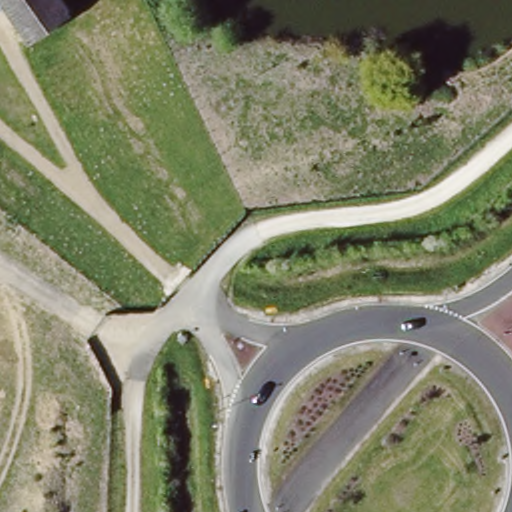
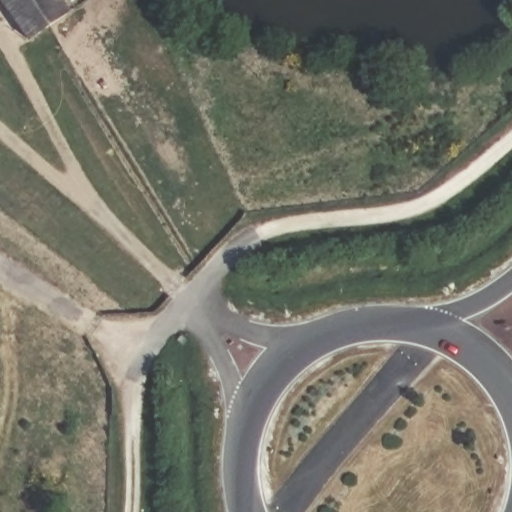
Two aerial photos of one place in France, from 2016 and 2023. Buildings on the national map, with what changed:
unchanged [(60,22),(57,24),(32,42),(3,0),(69,0),(76,11),(60,22)]

